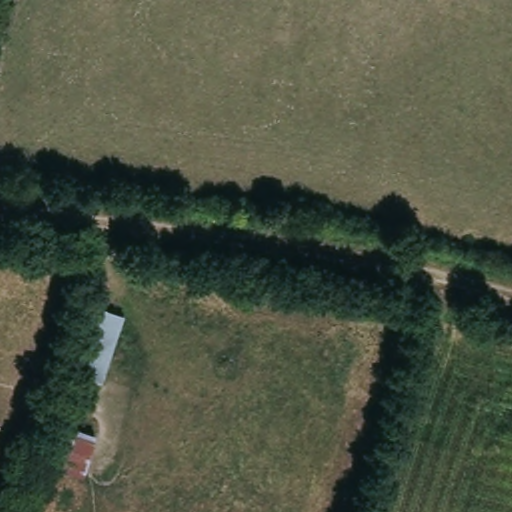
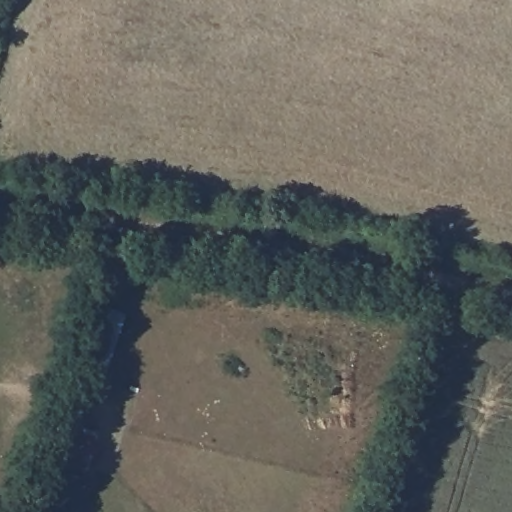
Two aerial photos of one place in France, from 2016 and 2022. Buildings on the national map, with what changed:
unchanged [(81,378),(93,342),(81,339),(92,304),(125,316),(103,383),(81,378)]

